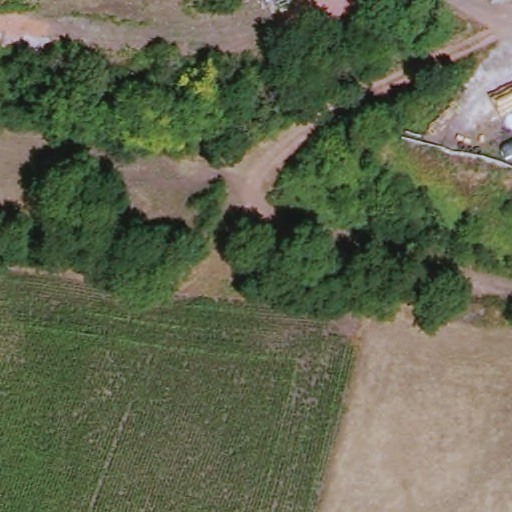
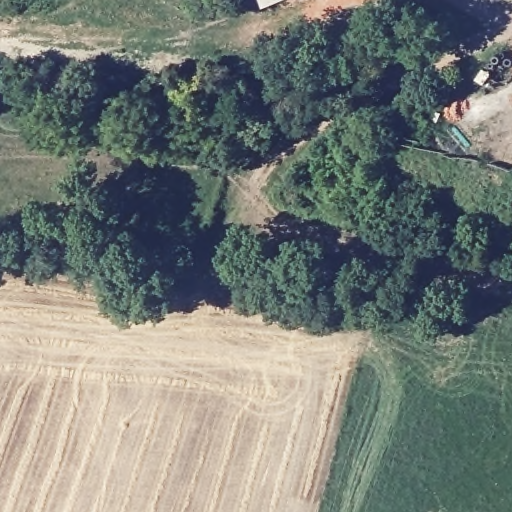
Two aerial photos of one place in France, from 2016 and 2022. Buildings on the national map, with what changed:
unchanged [(262,5),(259,0),(274,0),(262,5)]

